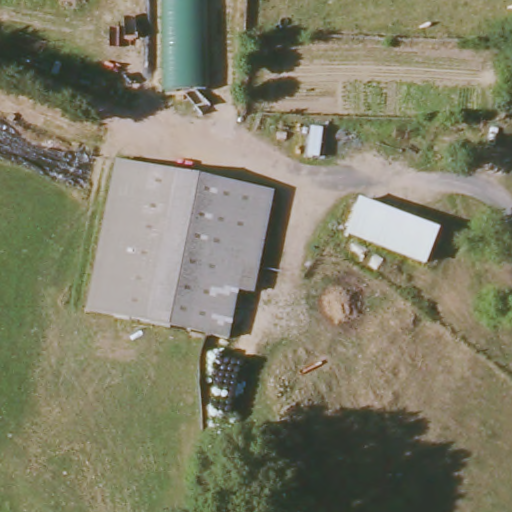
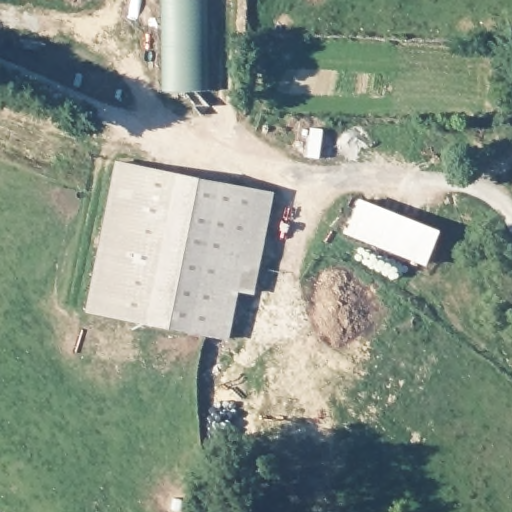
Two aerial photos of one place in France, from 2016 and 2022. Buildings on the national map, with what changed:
unchanged [(163,91),(161,0),(210,0),(211,89),(163,91)]
unchanged [(294,200),(278,272),(261,270),(246,340),(80,307),(112,161),(294,200)]
unchanged [(433,229),(421,262),(342,231),(356,197),(433,229)]

